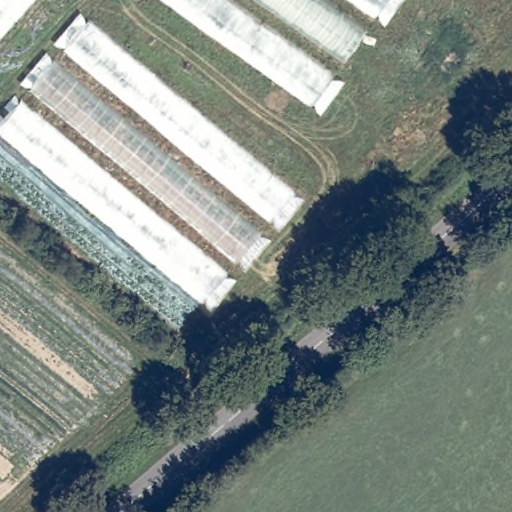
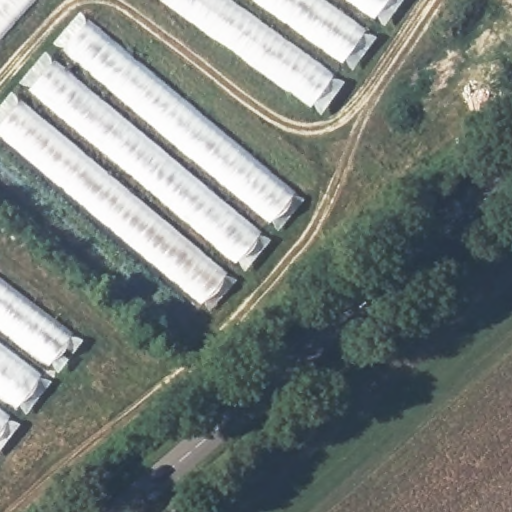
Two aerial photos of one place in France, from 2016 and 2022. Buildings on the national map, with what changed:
unchanged [(0,43),(0,0),(38,0),(0,43)]
unchanged [(325,111),(168,0),(405,0),(325,111)]
unchanged [(219,309),(0,129),(0,113),(85,16),(308,199),(219,309)]
new [(49,365),(0,328),(0,277),(74,332),(49,365)]
new [(17,407),(0,394),(0,343),(41,374),(17,407)]
new [(0,429),(0,408),(10,416),(0,429)]

